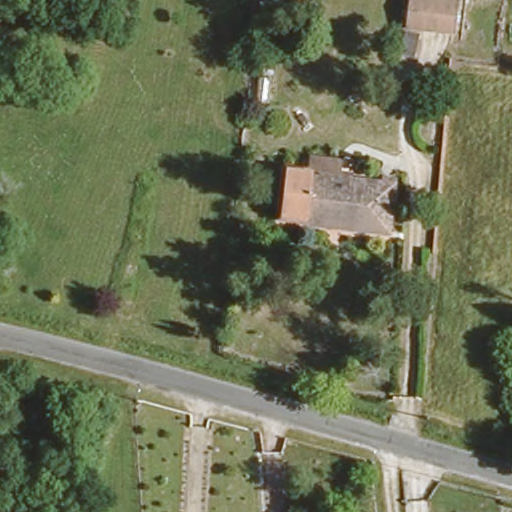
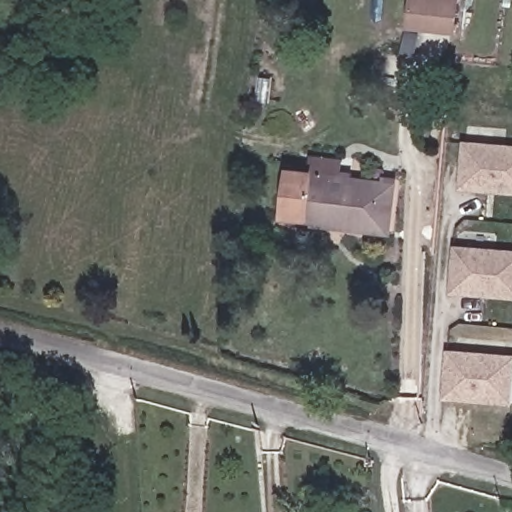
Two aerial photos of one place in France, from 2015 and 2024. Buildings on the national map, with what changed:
unchanged [(293,9),(295,0),(313,0),(311,11),(293,9)]
unchanged [(403,23),(406,0),(451,0),(448,28),(403,23)]
new [(512,148),(512,194),(462,189),(466,144),(512,148)]
unchanged [(305,220),(282,218),(288,171),(309,174),(311,163),(311,159),(339,162),(339,166),(338,179),(394,185),(389,234),(349,229),(304,224),(305,220)]
new [(512,299),(452,294),(457,249),(512,254),(512,299)]
new [(512,359),(512,406),(443,399),(448,353),(512,359)]

